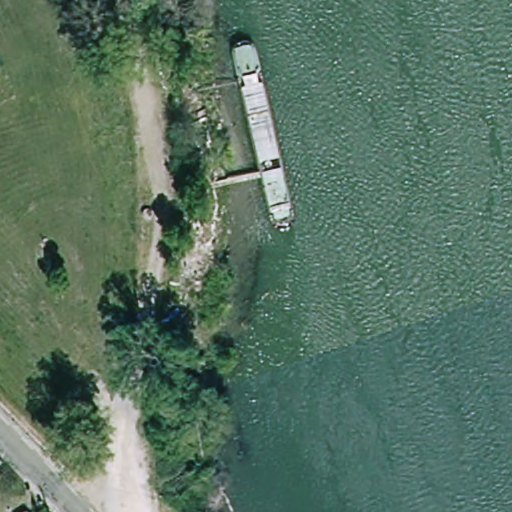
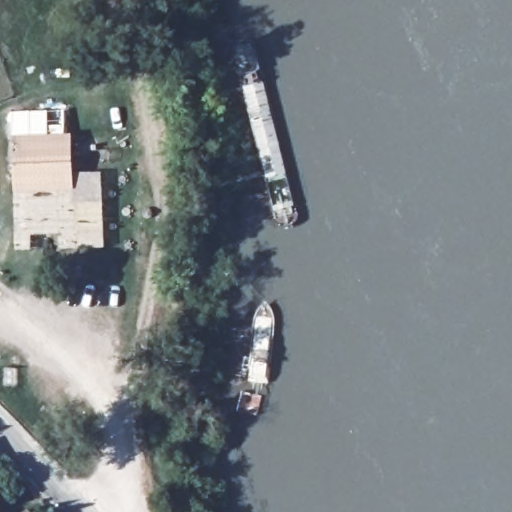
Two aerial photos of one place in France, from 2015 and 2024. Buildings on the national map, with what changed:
new [(65,135),(12,136),(12,112),(65,110),(65,135)]
new [(12,136),(72,135),(75,190),(15,192),(12,136)]
new [(60,249),(60,235),(32,235),(32,249),(16,250),(15,192),(75,190),(74,172),(103,172),(105,247),(60,249)]
unchanged [(37,512),(25,512),(33,506),(37,512)]

